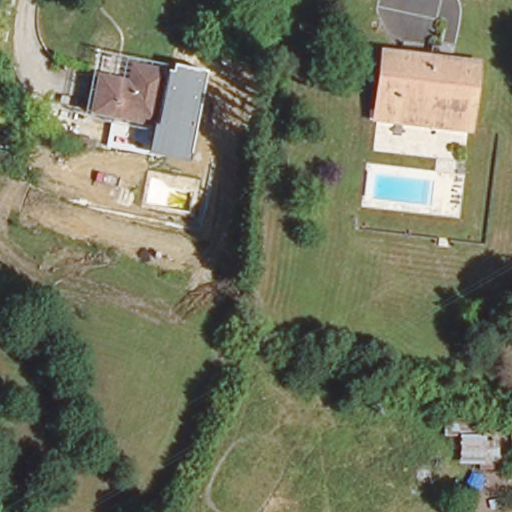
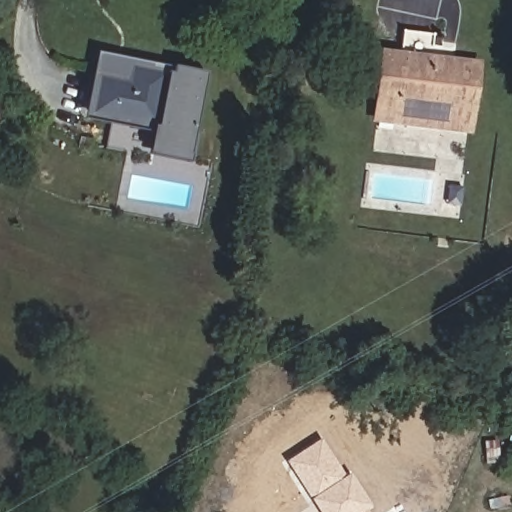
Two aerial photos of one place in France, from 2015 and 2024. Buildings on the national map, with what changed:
unchanged [(377,48),(473,57),(462,134),(366,124),(377,48)]
unchanged [(99,70),(131,74),(134,56),(170,60),(167,74),(166,79),(156,128),(90,116),(99,70)]
unchanged [(156,128),(166,79),(167,74),(173,75),(174,68),(207,73),(189,162),(149,154),(156,128)]
new [(369,512),(318,512),(285,462),(320,438),(345,476),(350,474),(371,506),(371,510),(369,512)]

